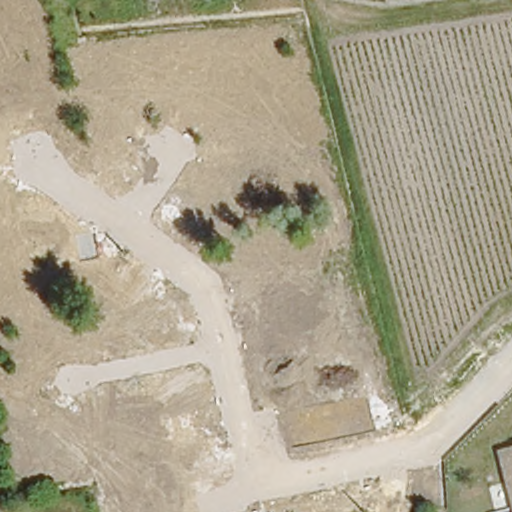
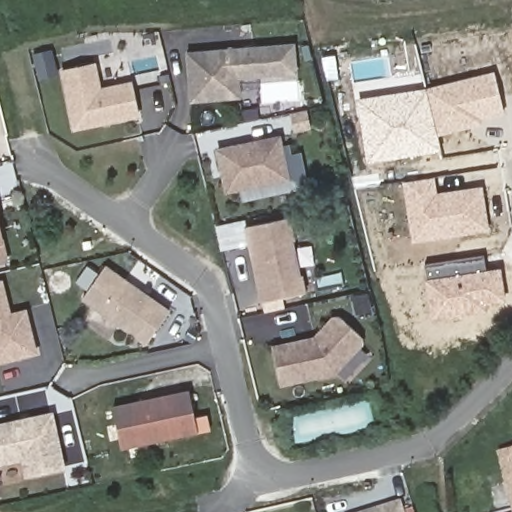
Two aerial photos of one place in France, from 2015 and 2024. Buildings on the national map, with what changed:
new [(239,78),(241,97),(189,102),(185,51),(295,42),(298,73),(239,78)]
demolished [(304,53),(309,72),(294,76),(289,56),(304,53)]
new [(139,116),(73,130),(59,68),(96,62),(101,86),(133,80),(139,116)]
new [(494,71),(505,114),(482,119),(483,124),(438,135),(442,150),(368,161),(358,98),(426,88),(494,71)]
new [(224,193),(215,147),(281,135),(290,179),(224,193)]
new [(435,176),(438,192),(483,186),(490,231),(412,242),(403,181),(435,176)]
new [(306,292),(260,302),(244,226),(289,217),(295,239),(292,240),(299,275),(302,274),(306,292)]
new [(0,224),(9,261),(0,263),(0,224)]
new [(428,278),(425,264),(485,255),(488,269),(502,267),(507,301),(485,304),(486,311),(432,320),(426,279),(428,278)]
new [(144,344),(81,299),(105,266),(169,310),(144,344)]
new [(0,363),(0,280),(3,279),(10,312),(27,308),(38,353),(0,363)]
new [(330,316),(342,316),(363,337),(362,346),(335,374),(280,386),(272,345),(314,336),(330,316)]
new [(199,432),(121,448),(111,405),(189,390),(199,432)]
new [(20,460),(0,465),(0,421),(53,410),(66,468),(24,477),(20,460)]
unchanged [(496,458),(512,454),(512,512),(511,512),(496,458)]
new [(399,500),(403,512),(360,512),(399,500)]

